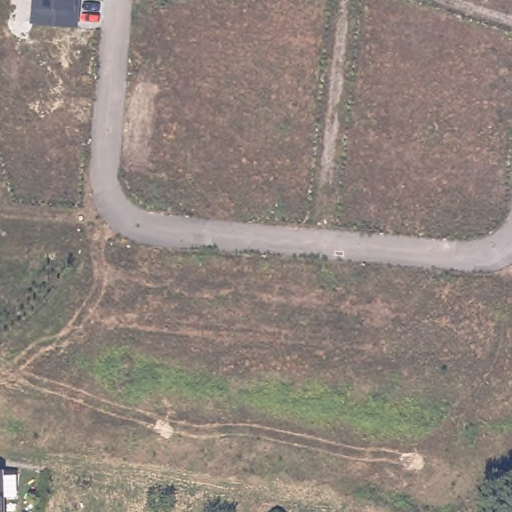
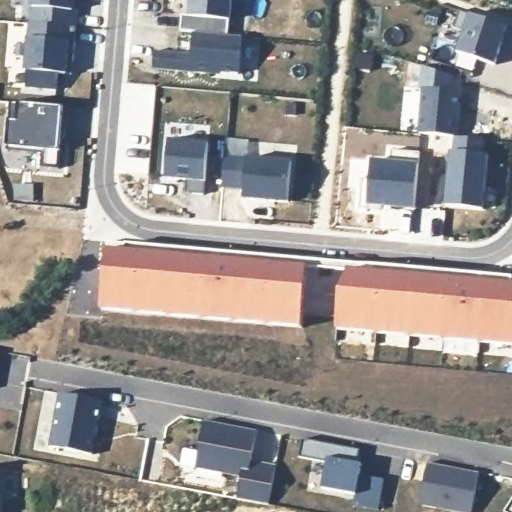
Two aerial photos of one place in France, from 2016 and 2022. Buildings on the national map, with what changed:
new [(77,29),(75,30),(72,75),(59,74),(57,93),(26,90),(27,71),(30,38),(32,0),(80,0),(77,29)]
new [(230,20),(229,35),(193,33),(180,32),(183,0),(232,0),(230,20)]
new [(457,10),(512,27),(512,43),(511,46),(501,43),(494,64),(456,51),(462,30),(452,27),(457,10)]
new [(227,35),(241,37),(238,73),(210,71),(209,74),(152,69),(154,51),(191,55),(193,33),(227,35)]
new [(419,133),(423,88),(460,91),(455,137),(421,133),(419,133)]
new [(10,103),(70,107),(68,127),(62,126),(59,170),(40,168),(42,155),(6,151),(10,103)]
new [(446,207),(451,151),(455,151),(456,137),(483,140),(481,154),(488,155),(482,210),(446,207)]
new [(169,140),(208,144),(204,195),(185,193),(186,180),(165,179),(169,140)]
new [(367,207),(371,161),(371,155),(390,157),(391,150),(420,152),(418,165),(415,209),(367,207)]
new [(242,200),(246,158),(293,163),(288,204),(242,200)]
new [(108,242),(307,258),(301,327),(102,310),(108,242)]
new [(340,292),(349,269),(361,270),(361,263),(512,275),(512,334),(338,320),(340,292)]
new [(338,320),(512,334),(512,344),(337,329),(338,320)]
new [(60,394),(102,402),(92,456),(50,448),(60,394)]
new [(205,422),(257,432),(251,463),(275,468),(268,507),(236,501),(241,477),(195,468),(205,422)]
new [(302,440),(360,451),(357,464),(361,465),(359,476),(383,481),(377,511),(352,507),(355,496),(322,490),(327,464),(298,459),(302,440)]
new [(479,474),(472,512),(452,512),(420,506),(428,464),(479,474)]
unchanged [(0,476),(14,476),(15,498),(1,498),(2,512),(0,512),(0,471),(0,476)]

